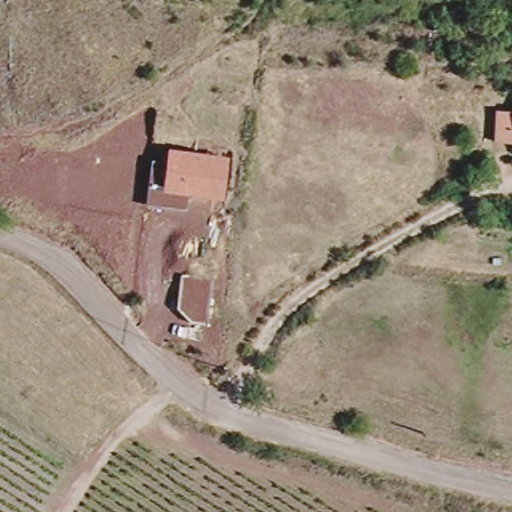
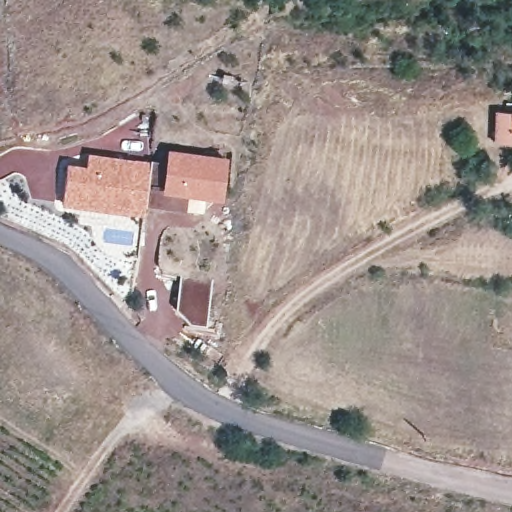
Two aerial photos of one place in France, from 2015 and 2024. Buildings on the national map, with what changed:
unchanged [(490,143),(492,109),(512,109),(512,144),(490,143)]
unchanged [(146,204),(152,160),(167,159),(168,149),(230,159),(223,199),(188,194),(186,209),(146,204)]
new [(146,204),(145,214),(63,203),(68,164),(86,165),(89,152),(152,160),(146,204)]
unchanged [(176,274),(211,279),(203,328),(185,325),(170,309),(176,274)]

